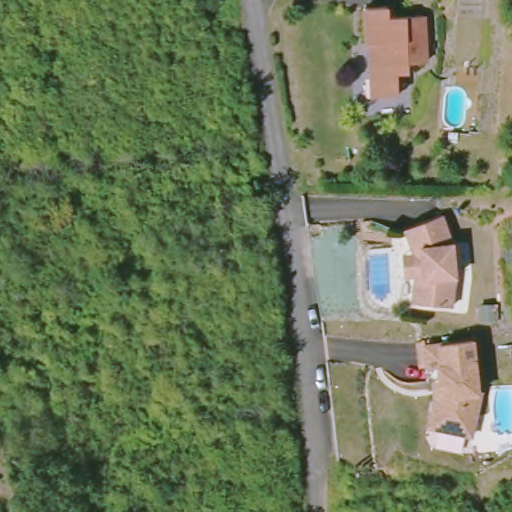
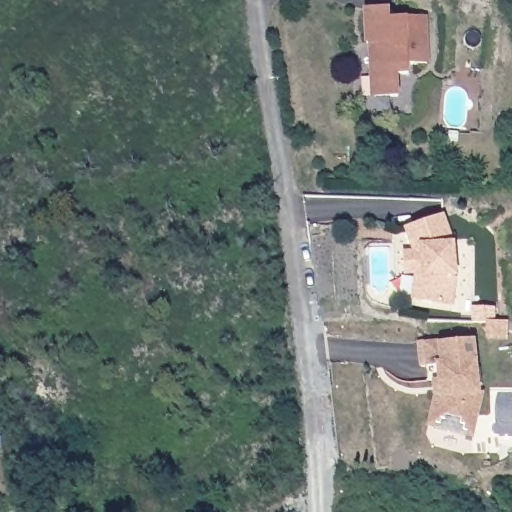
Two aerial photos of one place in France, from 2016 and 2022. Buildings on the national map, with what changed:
unchanged [(377,8),(379,19),(416,14),(423,61),(403,64),(404,73),(398,74),(401,97),(377,100),(374,82),(368,79),(363,56),(371,54),(370,47),(361,48),(354,11),(377,8)]
unchanged [(412,266),(410,246),(406,233),(402,224),(443,213),(449,235),(452,244),(454,264),(454,271),(412,269),(412,266)]
unchanged [(452,305),(408,298),(412,269),(454,271),(452,305)]
unchanged [(494,311),(493,324),(475,324),(476,310),(494,311)]
unchanged [(427,385),(423,385),(421,369),(417,370),(415,342),(422,342),(422,347),(471,342),(473,393),(476,397),(464,438),(429,429),(420,427),(428,398),(427,385)]

